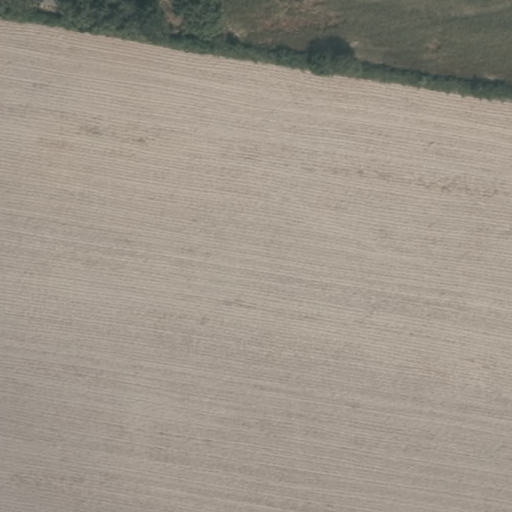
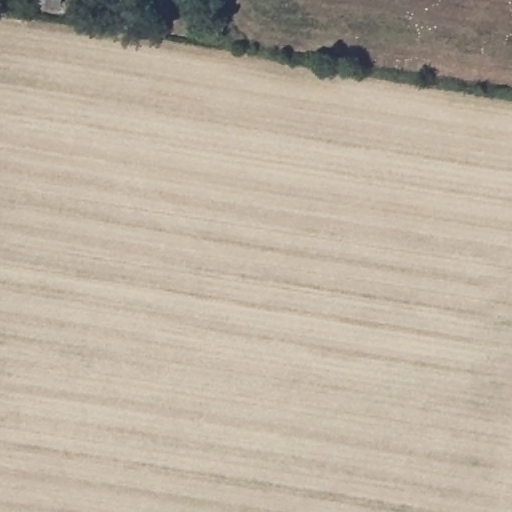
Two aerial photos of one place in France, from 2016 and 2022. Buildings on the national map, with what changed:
unchanged [(60,8),(38,2),(38,0),(62,0),(60,8)]

